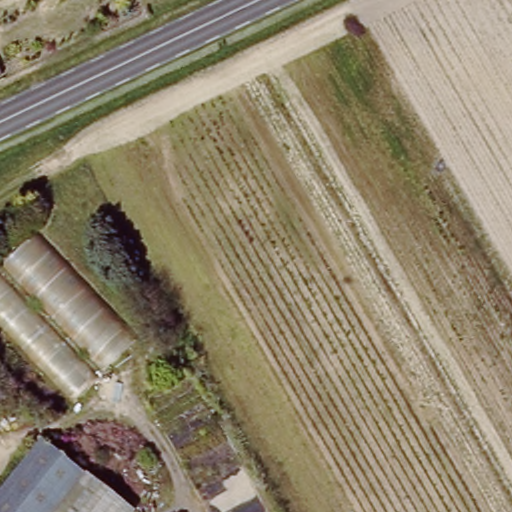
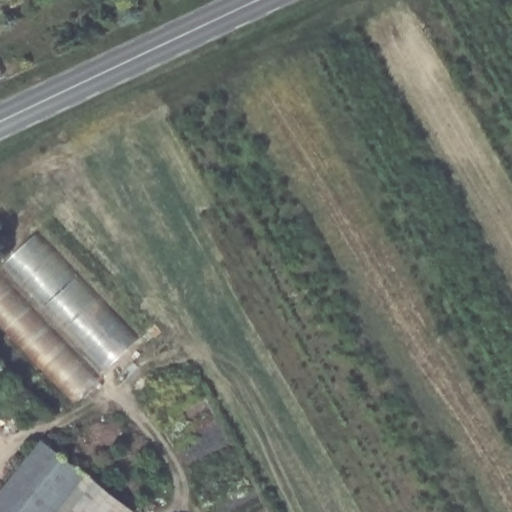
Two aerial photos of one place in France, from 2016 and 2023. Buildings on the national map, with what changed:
unchanged [(36,235),(139,339),(69,406),(0,332),(0,266),(36,235)]
unchanged [(40,439),(84,474),(53,512),(0,512),(0,489),(40,439)]
unchanged [(84,474),(131,512),(53,512),(84,474)]

